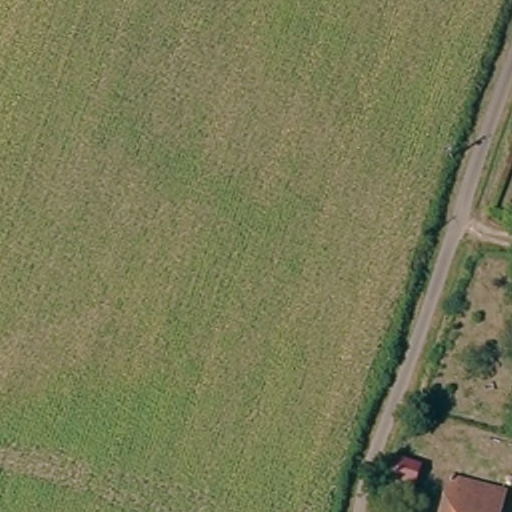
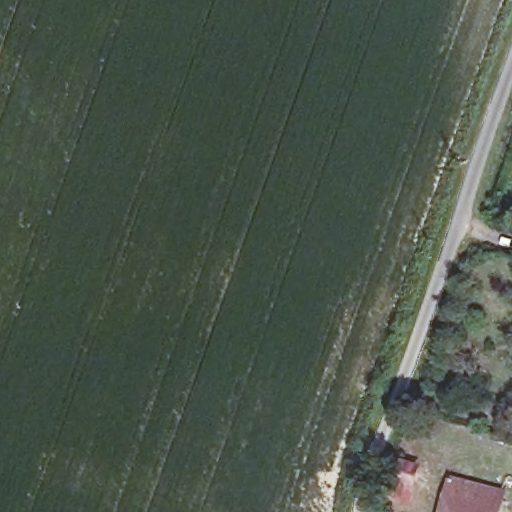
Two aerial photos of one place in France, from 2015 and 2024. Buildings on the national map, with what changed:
unchanged [(425,472),(418,500),(385,492),(394,452),(428,459),(425,472)]
unchanged [(512,495),(507,512),(447,512),(455,480),(512,495)]

